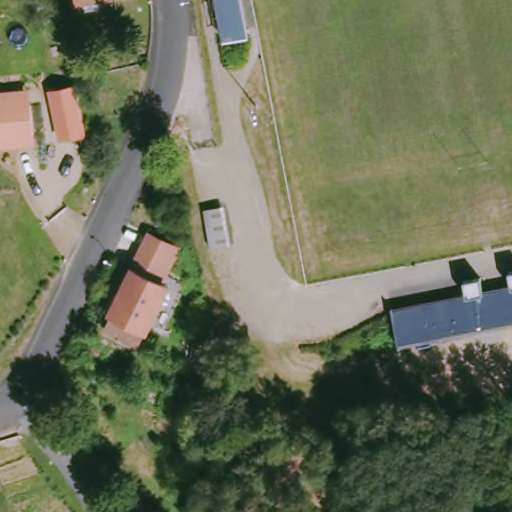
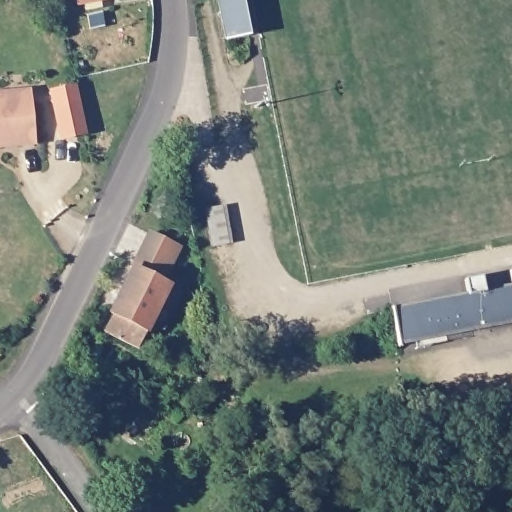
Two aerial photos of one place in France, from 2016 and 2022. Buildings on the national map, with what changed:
unchanged [(82,6),(81,0),(114,0),(82,6)]
unchanged [(247,0),(254,34),(228,38),(221,0),(247,0)]
unchanged [(75,85),(87,135),(59,143),(48,91),(75,85)]
unchanged [(3,149),(3,144),(0,144),(0,96),(3,95),(33,95),(33,110),(34,149),(3,149)]
unchanged [(229,206),(234,242),(214,244),(209,209),(229,206)]
unchanged [(181,244),(164,281),(171,285),(136,348),(97,327),(148,227),(181,244)]
unchanged [(512,273),(512,285),(509,273),(512,273)]
unchanged [(467,282),(483,279),(486,293),(512,288),(512,324),(401,346),(394,310),(469,296),(467,282)]

